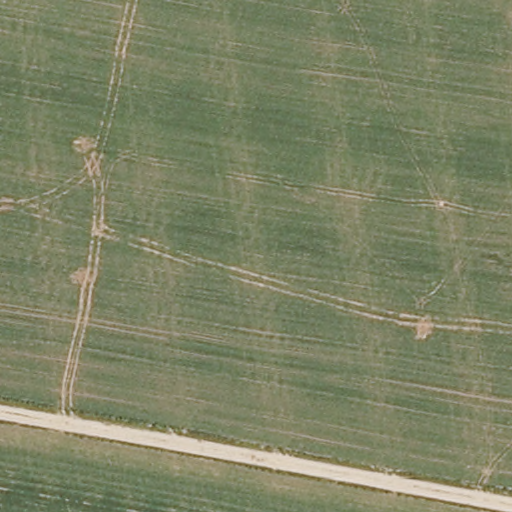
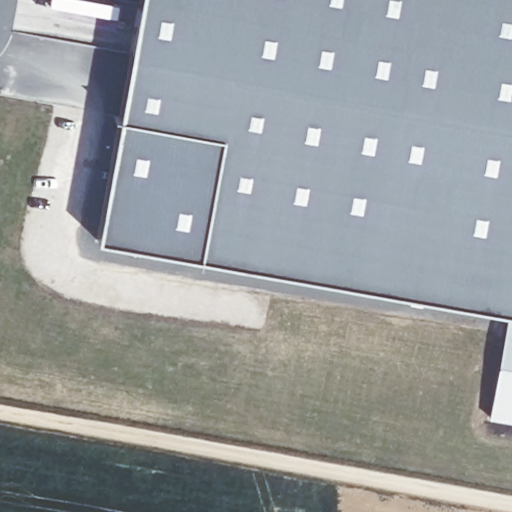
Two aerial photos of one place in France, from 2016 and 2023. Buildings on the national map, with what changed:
new [(140,0),(512,0),(512,314),(96,239),(140,0)]

